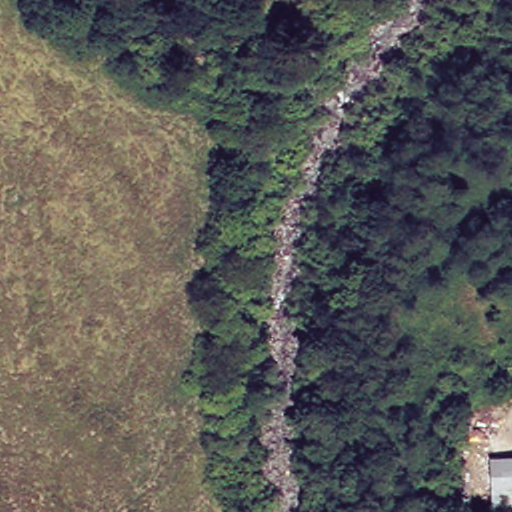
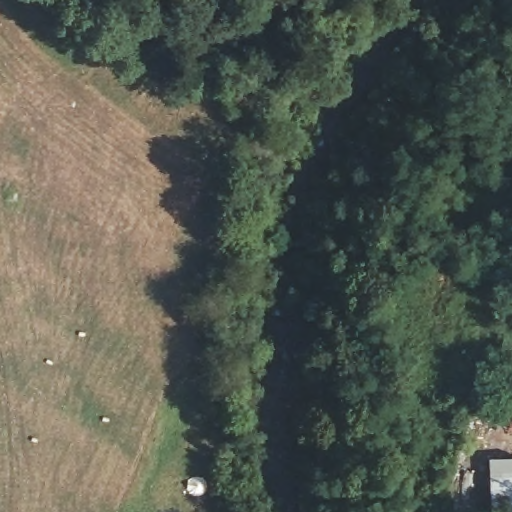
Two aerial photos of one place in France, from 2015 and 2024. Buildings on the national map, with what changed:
unchanged [(491,512),(488,458),(512,458),(512,512),(491,512)]

